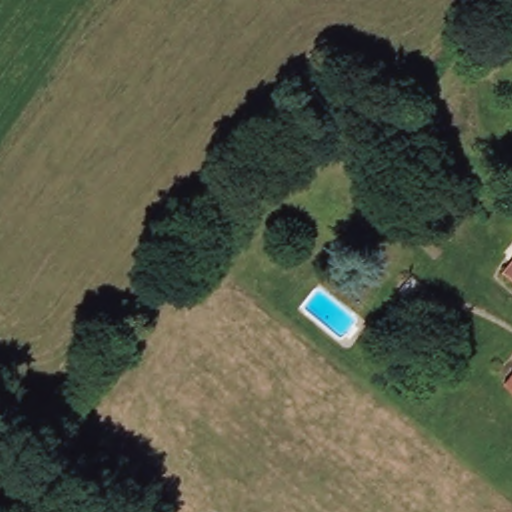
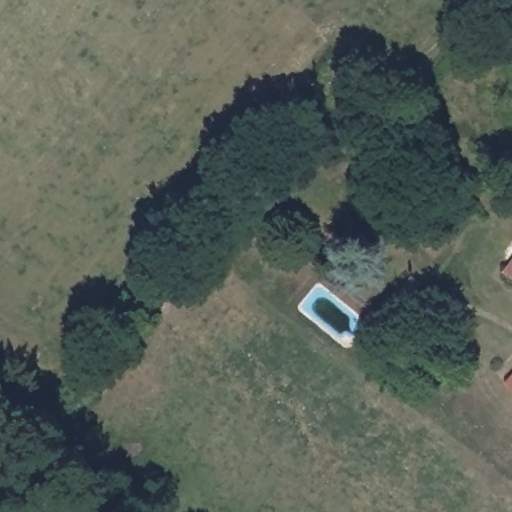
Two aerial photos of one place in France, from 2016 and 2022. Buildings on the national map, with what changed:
unchanged [(512,260),(512,287),(498,277),(512,260)]
unchanged [(506,382),(512,377),(512,388),(506,382)]

